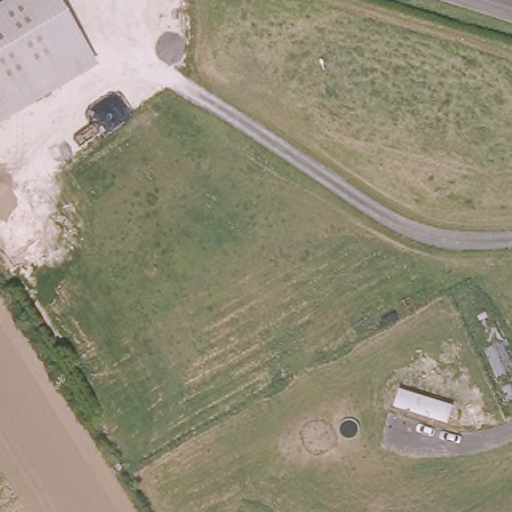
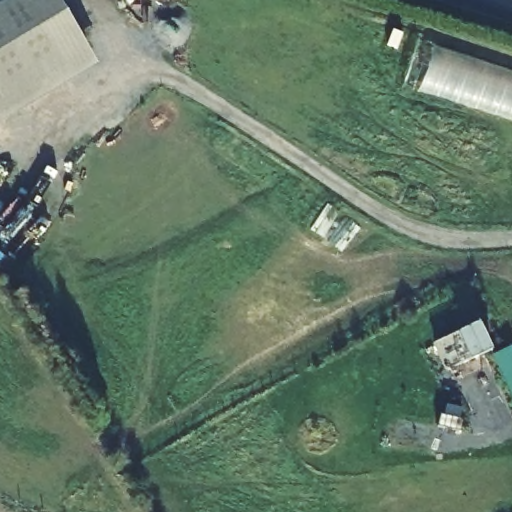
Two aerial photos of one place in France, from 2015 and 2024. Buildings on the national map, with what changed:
unchanged [(0,122),(0,0),(55,0),(93,68),(0,122)]
new [(512,71),(512,121),(403,86),(417,41),(512,71)]
new [(457,331),(478,322),(491,349),(470,359),(445,370),(432,344),(457,331)]
new [(511,346),(512,347),(512,398),(492,355),(511,346)]

